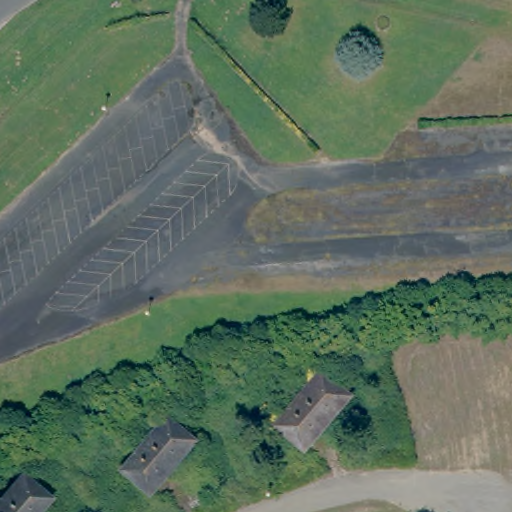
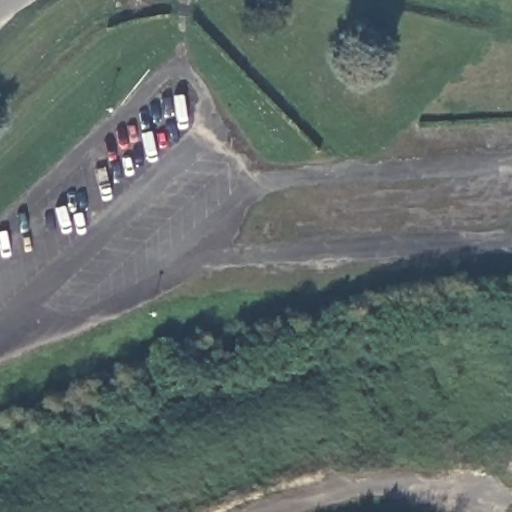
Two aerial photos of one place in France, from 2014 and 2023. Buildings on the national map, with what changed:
demolished [(302,459),(271,431),(318,375),(350,403),(302,459)]
demolished [(150,497),(119,471),(164,416),(197,443),(150,497)]
demolished [(38,512),(0,512),(0,499),(20,475),(49,501),(38,512)]

